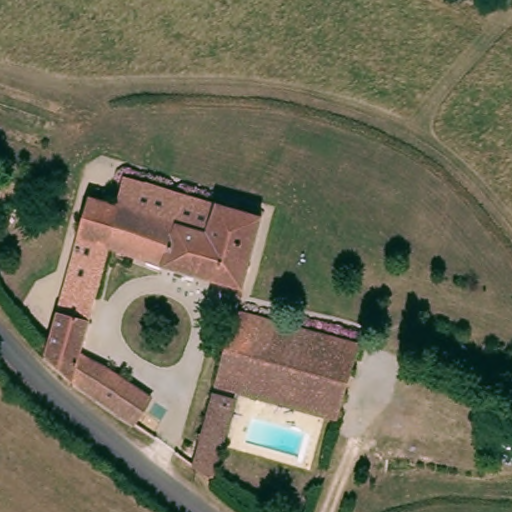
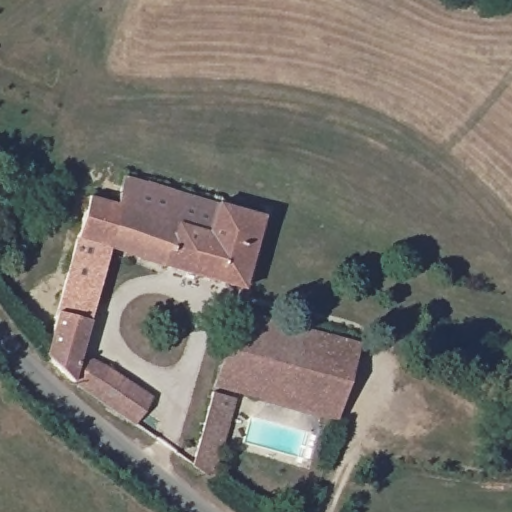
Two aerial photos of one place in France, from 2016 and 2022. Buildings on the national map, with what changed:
unchanged [(96,407),(35,357),(84,212),(106,218),(125,175),(267,216),(236,293),(114,254),(75,350),(113,377),(96,407)]
unchanged [(330,420),(205,382),(235,308),(360,351),(330,420)]
unchanged [(150,402),(130,433),(96,407),(113,377),(150,402)]
unchanged [(218,402),(236,409),(212,476),(190,469),(218,402)]

